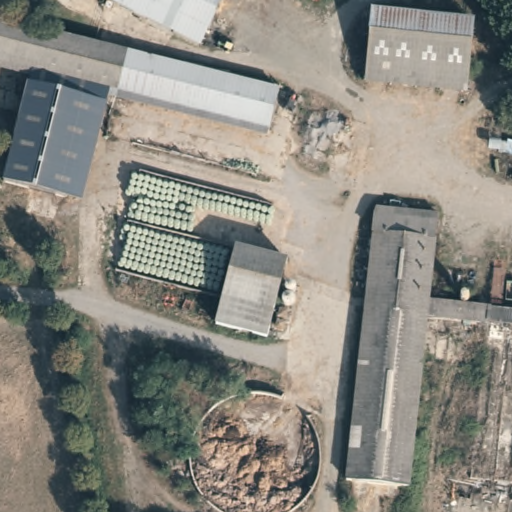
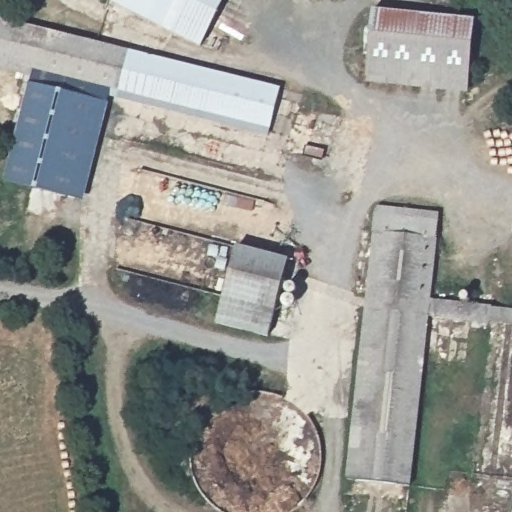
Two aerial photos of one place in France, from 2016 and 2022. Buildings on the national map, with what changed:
unchanged [(115,0),(229,0),(207,45),(115,0)]
unchanged [(468,91),(366,81),(374,11),(475,21),(468,91)]
unchanged [(0,61),(0,19),(280,89),(269,127),(0,61)]
unchanged [(110,99),(84,200),(5,182),(27,85),(27,77),(0,71),(0,61),(269,127),(267,135),(110,99)]
unchanged [(430,296),(491,302),(490,308),(489,318),(429,312),(408,497),(347,491),(377,203),(440,209),(430,296)]
unchanged [(269,337),(217,323),(238,247),(289,260),(269,337)]
unchanged [(489,318),(490,308),(512,312),(512,323),(489,318)]

